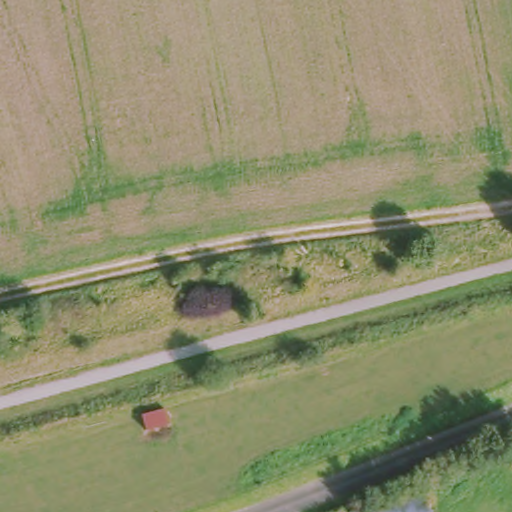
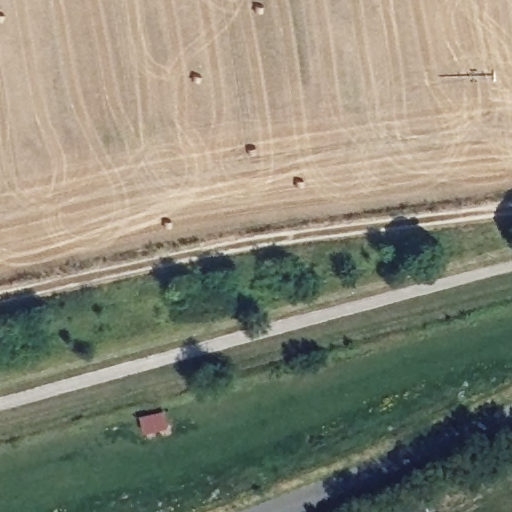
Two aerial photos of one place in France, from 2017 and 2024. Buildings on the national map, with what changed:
unchanged [(409,512),(396,512),(408,508),(409,512)]

